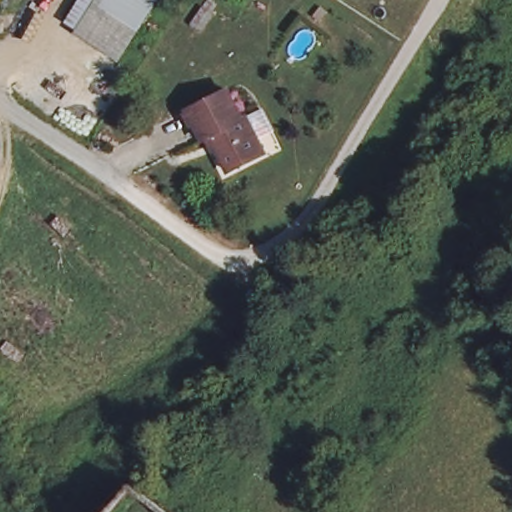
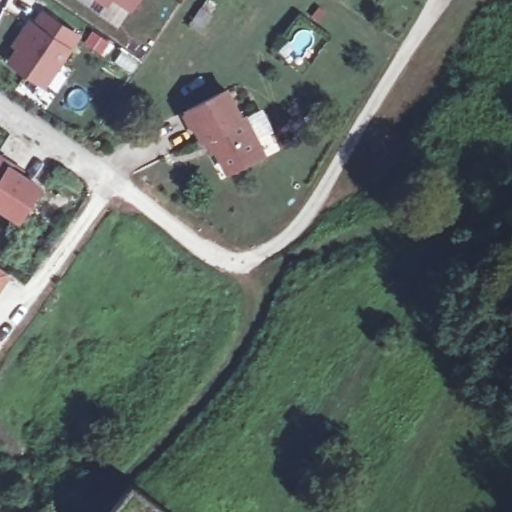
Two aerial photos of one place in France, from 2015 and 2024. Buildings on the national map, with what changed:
new [(102,0),(106,0),(105,2),(102,0)]
new [(122,0),(135,0),(131,6),(122,0)]
new [(78,35),(69,49),(45,85),(8,61),(23,40),(19,37),(30,22),(33,25),(42,12),(78,35)]
unchanged [(247,118),(268,151),(231,174),(211,139),(201,144),(184,115),(223,92),(240,121),(247,118)]
new [(7,163),(43,186),(19,223),(0,210),(0,152),(10,158),(7,163)]
new [(0,286),(0,267),(9,273),(0,286)]

